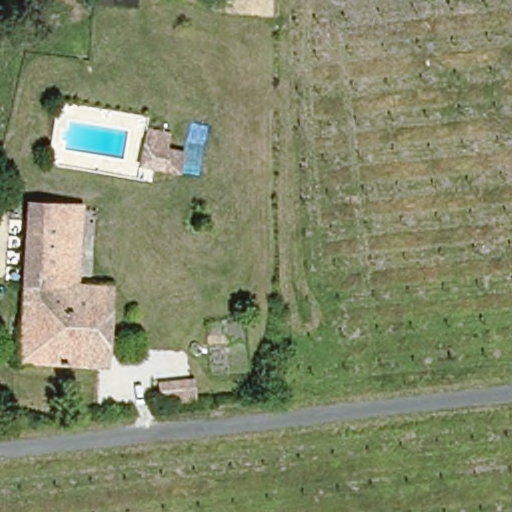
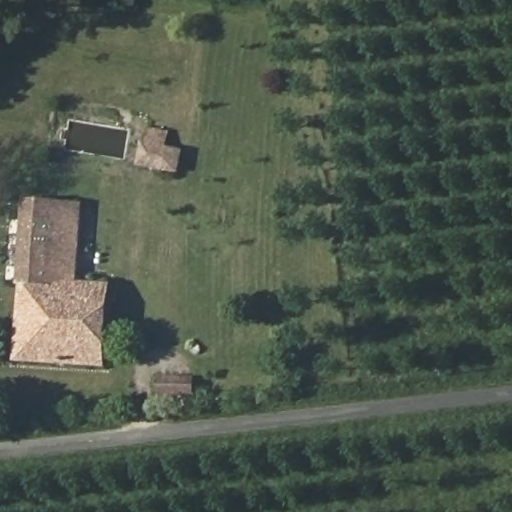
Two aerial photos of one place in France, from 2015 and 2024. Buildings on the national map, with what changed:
unchanged [(178,173),(137,165),(145,125),(168,129),(167,145),(183,149),(178,173)]
unchanged [(102,287),(99,363),(15,360),(18,219),(66,220),(64,285),(102,287)]
unchanged [(191,398),(154,400),(154,379),(191,376),(191,398)]

